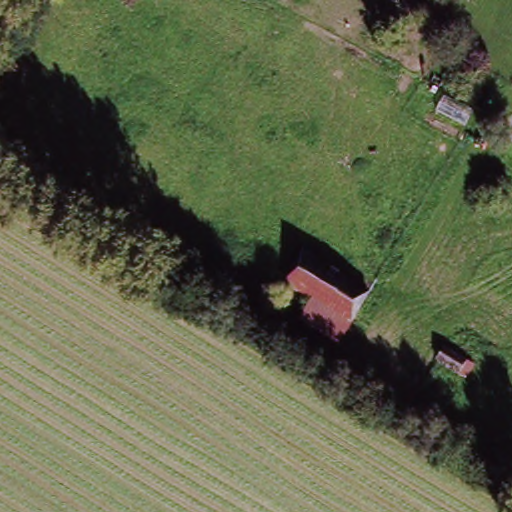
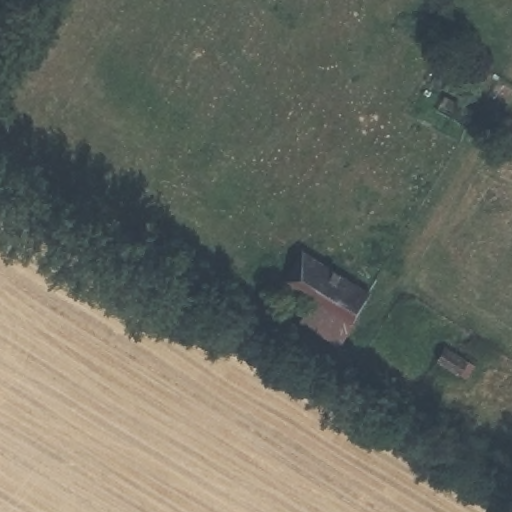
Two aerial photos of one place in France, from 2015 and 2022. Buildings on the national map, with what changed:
unchanged [(286,276),(303,248),(368,289),(336,336),(303,315),(315,297),(286,276)]
unchanged [(460,374),(432,359),(440,345),(468,361),(460,374)]

